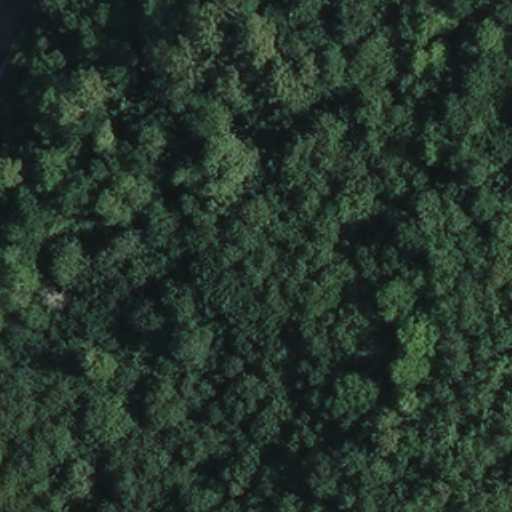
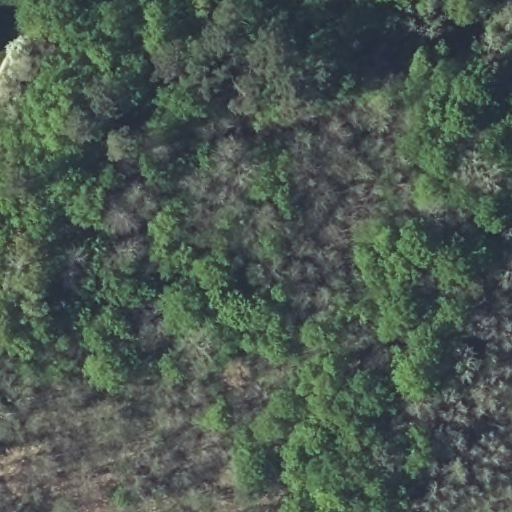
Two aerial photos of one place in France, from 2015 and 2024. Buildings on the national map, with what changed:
[]

